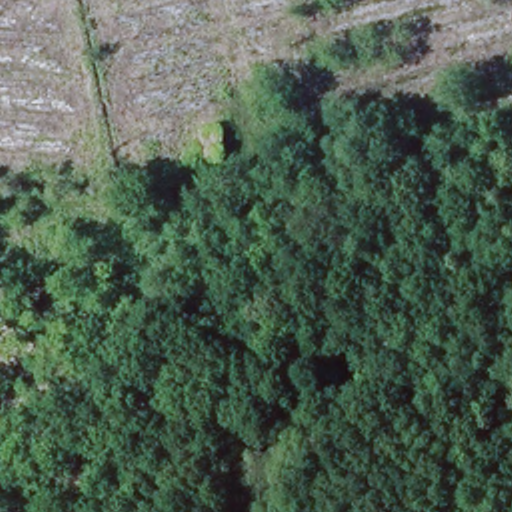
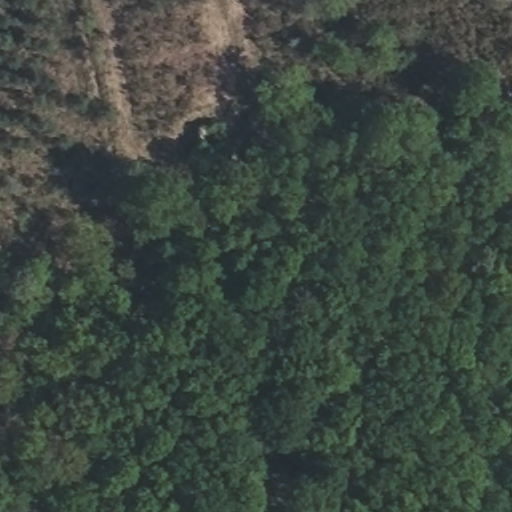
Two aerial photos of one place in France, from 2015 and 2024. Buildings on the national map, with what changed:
unchanged [(221,162),(195,164),(192,129),(220,128),(221,162)]

